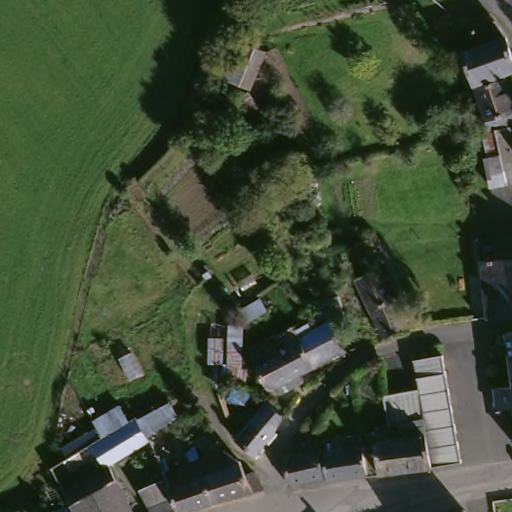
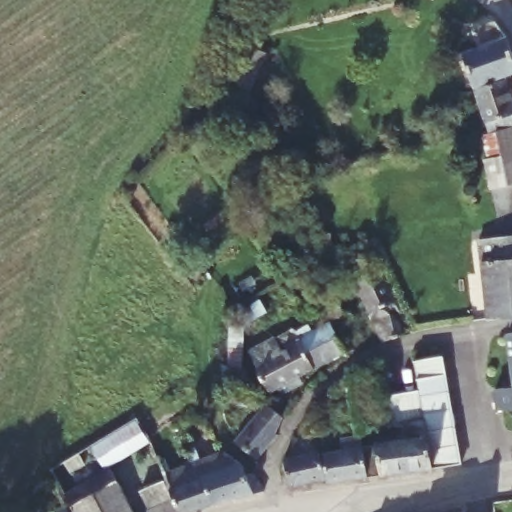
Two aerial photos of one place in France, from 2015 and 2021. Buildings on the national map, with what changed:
unchanged [(465,51),(480,46),(475,29),(497,21),(505,32),(508,36),(512,48),(512,71),(506,73),(476,85),(465,51)]
unchanged [(252,93),(227,80),(245,45),(272,58),(252,93)]
unchanged [(476,85),(506,73),(512,71),(512,111),(487,119),(476,85)]
unchanged [(512,170),(498,127),(512,122),(512,170)]
unchanged [(512,316),(486,320),(477,243),(512,238),(512,316)]
unchanged [(381,342),(368,314),(353,281),(377,270),(393,302),(406,330),(381,342)]
unchanged [(324,318),(320,319),(313,300),(335,293),(341,312),(324,318)]
unchanged [(296,375),(299,381),(285,388),(282,382),(269,388),(254,359),(249,349),(286,331),(290,341),(330,322),(344,351),(296,375)]
unchanged [(424,417),(419,387),(418,382),(416,375),(415,368),(415,362),(417,357),(443,354),(446,372),(460,461),(431,465),(424,417)]
unchanged [(401,424),(390,427),(384,393),(419,387),(424,417),(401,424)]
unchanged [(500,391),(512,388),(512,409),(502,411),(500,391)]
unchanged [(269,407),(286,419),(276,434),(277,436),(255,458),(236,440),(256,417),(269,407)]
unchanged [(424,417),(431,465),(366,474),(362,442),(408,435),(407,428),(402,428),(401,424),(424,417)]
unchanged [(137,421),(150,441),(109,465),(94,444),(137,421)]
unchanged [(288,482),(282,454),(290,452),(290,436),(313,431),(316,444),(324,475),(288,482)]
unchanged [(326,474),(324,451),(343,448),(342,438),(362,436),(362,442),(366,474),(327,479),(326,474)]
unchanged [(219,469),(233,467),(236,475),(242,474),(252,490),(219,500),(181,512),(167,512),(154,480),(211,453),(219,469)]
unchanged [(74,512),(68,499),(113,472),(126,498),(99,512),(74,512)]
unchanged [(134,512),(99,512),(126,498),(134,512)]
unchanged [(468,512),(455,512),(466,508),(468,512)]

